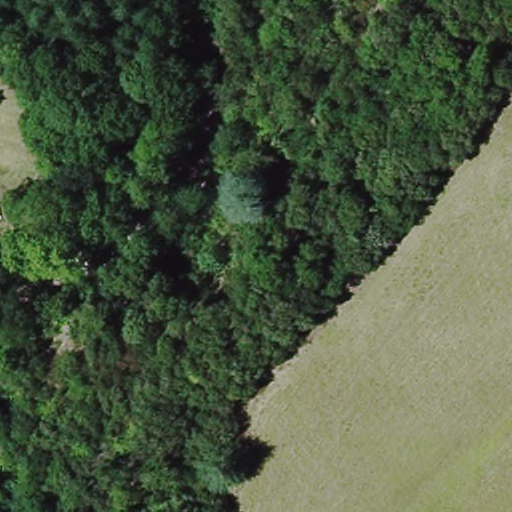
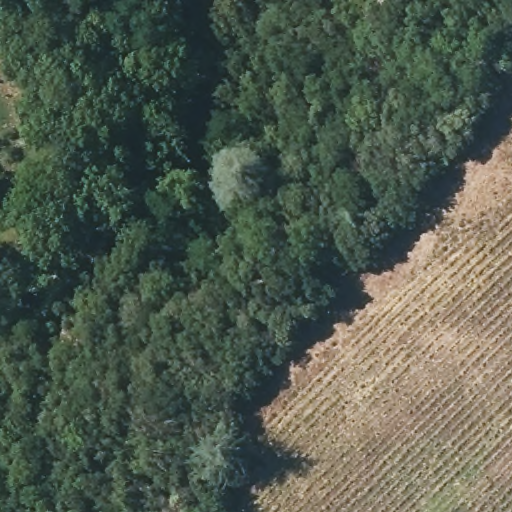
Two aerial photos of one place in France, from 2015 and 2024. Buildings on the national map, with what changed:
[]

